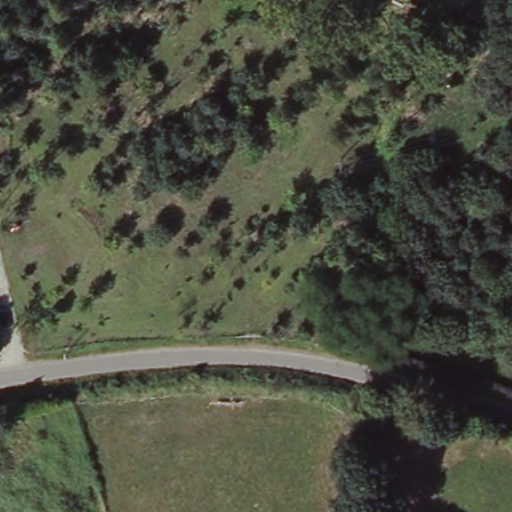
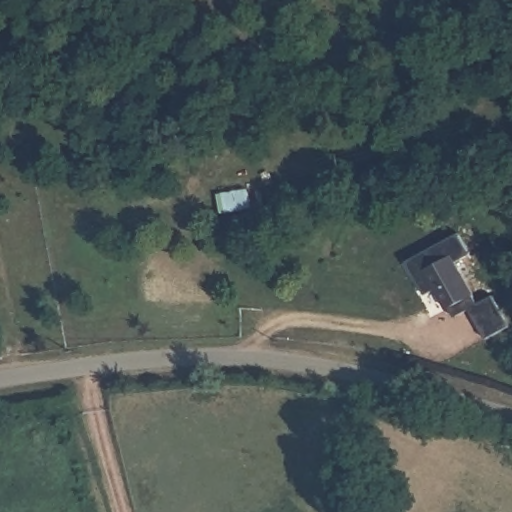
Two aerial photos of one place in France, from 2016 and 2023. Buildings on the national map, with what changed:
new [(460,230),(472,254),(458,263),(478,302),(493,294),(510,324),(485,337),(469,309),(456,315),(450,303),(446,304),(436,288),(425,294),(406,259),(460,230)]

